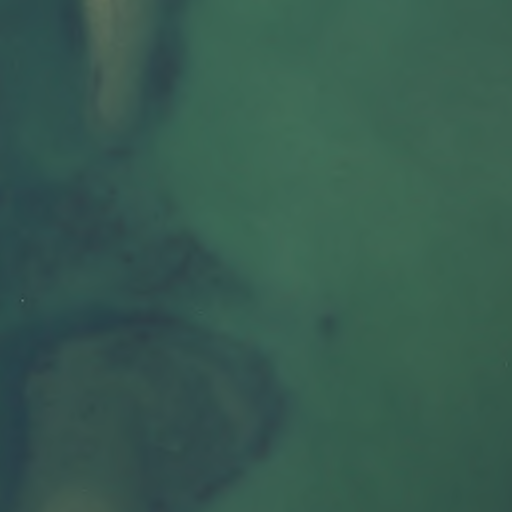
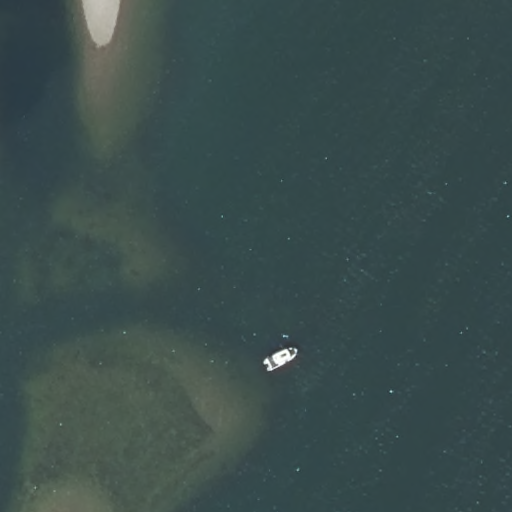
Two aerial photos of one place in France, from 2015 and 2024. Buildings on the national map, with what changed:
[]

